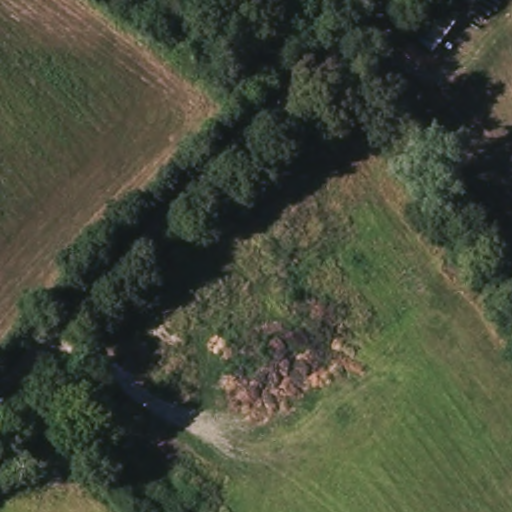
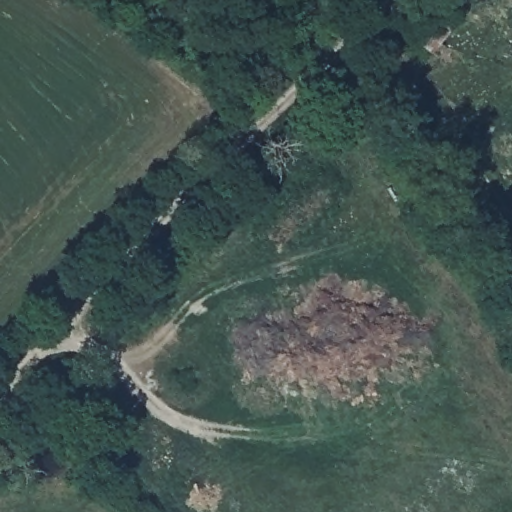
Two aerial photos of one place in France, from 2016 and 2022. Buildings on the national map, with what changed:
unchanged [(440,55),(414,37),(438,3),(465,21),(440,55)]

